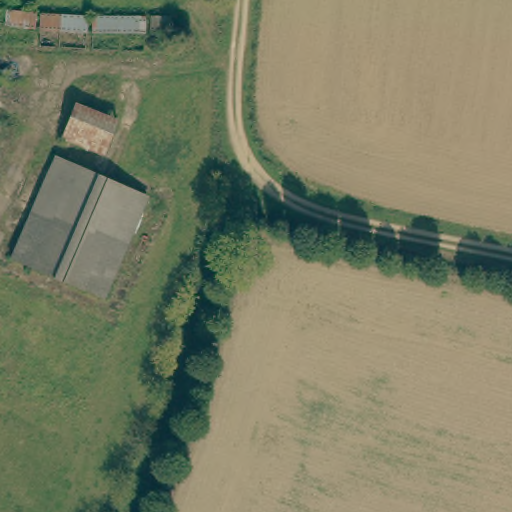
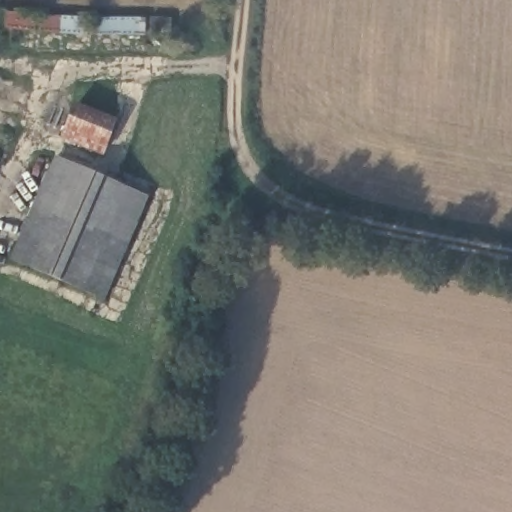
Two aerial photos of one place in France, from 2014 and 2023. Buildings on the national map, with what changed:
unchanged [(12,9),(33,14),(31,29),(5,27),(7,8),(12,9)]
unchanged [(81,35),(42,31),(45,16),(83,19),(81,35)]
unchanged [(171,38),(152,37),(153,20),(171,21),(171,38)]
unchanged [(143,37),(94,36),(94,21),(144,21),(143,37)]
unchanged [(102,155),(66,141),(80,109),(116,121),(102,155)]
unchanged [(103,298),(14,261),(56,165),(145,200),(103,298)]

